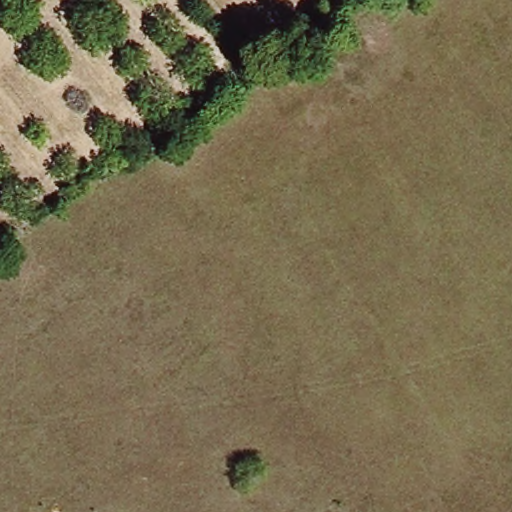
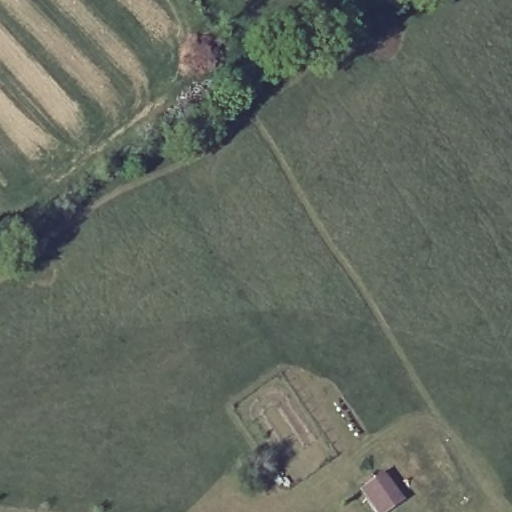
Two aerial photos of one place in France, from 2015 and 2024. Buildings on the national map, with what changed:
new [(404,502),(390,512),(375,512),(359,490),(384,473),(404,502)]

